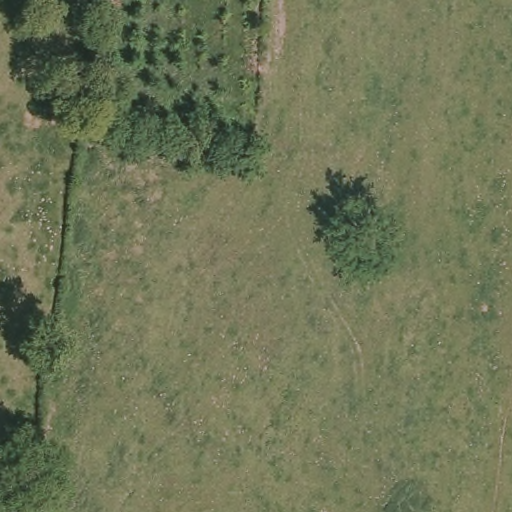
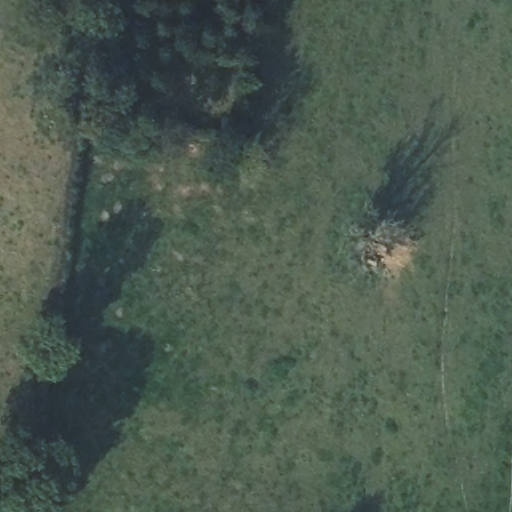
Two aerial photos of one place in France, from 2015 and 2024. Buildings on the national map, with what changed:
[]

